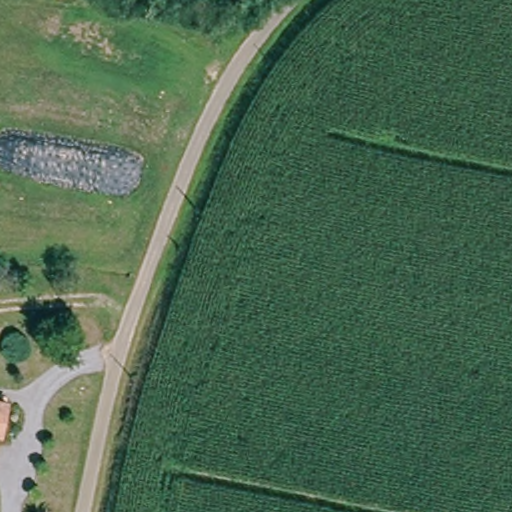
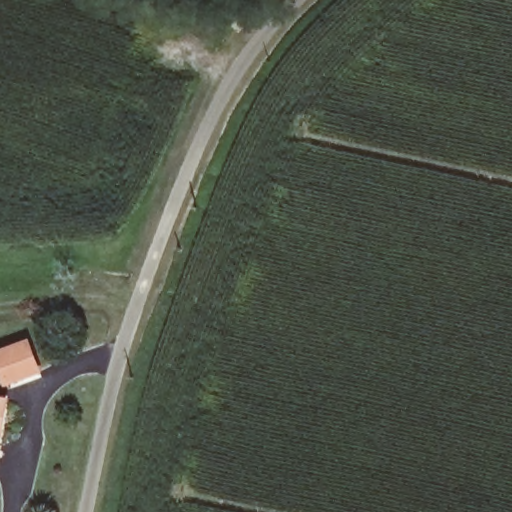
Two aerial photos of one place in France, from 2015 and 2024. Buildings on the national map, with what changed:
new [(0,375),(0,350),(31,338),(44,373),(5,388),(0,375)]
unchanged [(0,430),(0,401),(6,402),(2,430),(0,430)]

